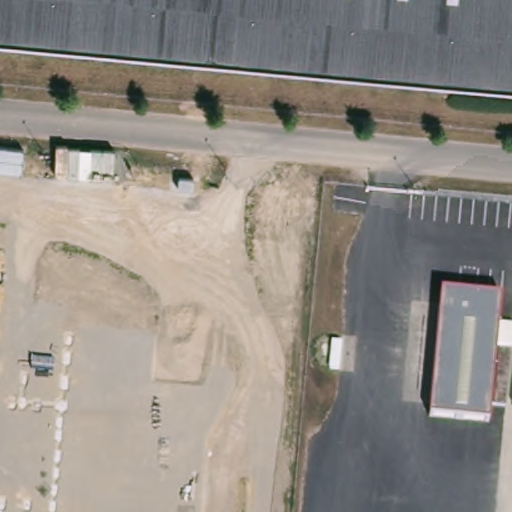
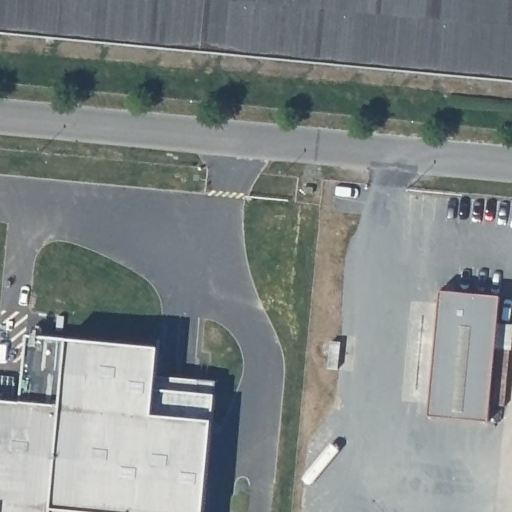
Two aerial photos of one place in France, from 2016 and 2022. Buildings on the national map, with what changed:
unchanged [(512,0),(512,82),(0,34),(0,0),(512,0)]
unchanged [(489,422),(428,417),(440,292),(500,297),(489,422)]
new [(20,402),(27,333),(68,338),(158,346),(157,372),(213,380),(212,395),(210,420),(202,512),(0,512),(0,507),(0,501),(0,500),(0,399),(20,402)]

